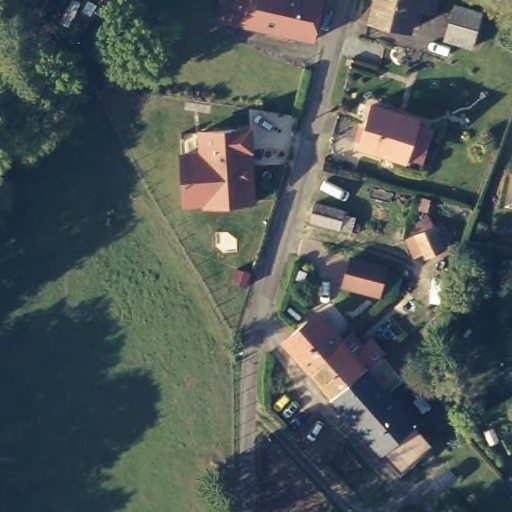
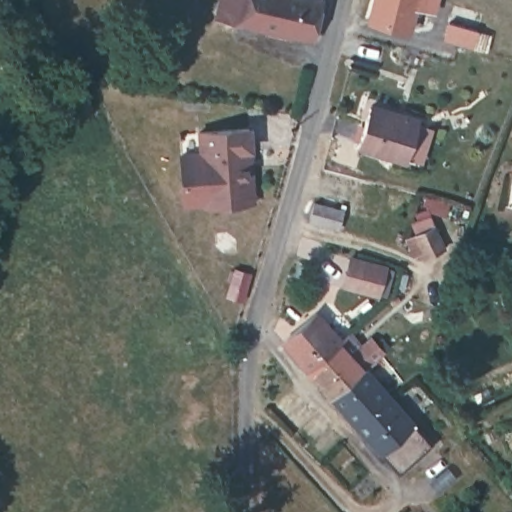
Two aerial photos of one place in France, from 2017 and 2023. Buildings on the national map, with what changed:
unchanged [(222,0),(321,0),(308,42),(218,14),(222,0)]
unchanged [(433,11),(415,5),(407,31),(365,19),(371,0),(437,0),(433,11)]
unchanged [(448,38),(460,5),(487,13),(477,45),(448,38)]
unchanged [(237,40),(247,43),(242,60),(233,57),(237,40)]
unchanged [(358,149),(360,142),(371,105),(373,105),(423,118),(418,135),(410,161),(397,158),(358,149)]
unchanged [(246,203),(202,205),(200,133),(250,130),(251,151),(253,203),(246,203)]
unchanged [(317,201),(348,210),(342,231),(309,221),(317,201)]
unchanged [(433,224),(442,247),(424,254),(413,258),(406,237),(407,233),(413,231),(433,224)]
unchanged [(352,256),(395,269),(388,300),(345,289),(352,256)]
unchanged [(237,267),(252,272),(248,289),(232,285),(237,267)]
unchanged [(394,399),(435,444),(403,473),(362,428),(338,403),(312,375),(287,349),(319,318),(345,345),(370,373),(394,399)]

